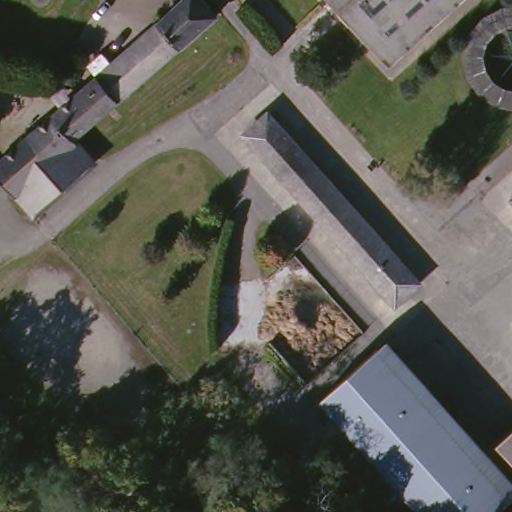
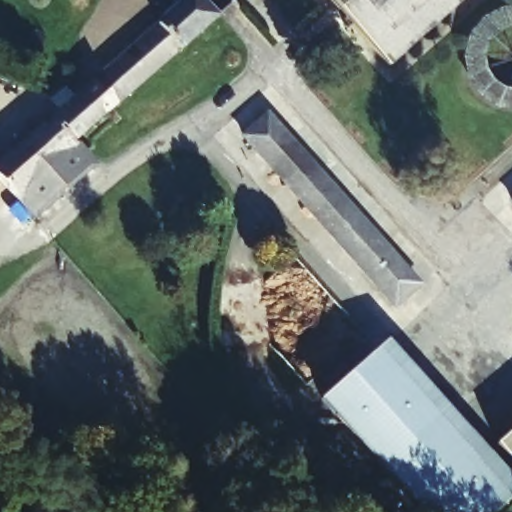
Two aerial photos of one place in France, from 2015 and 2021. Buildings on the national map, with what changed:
unchanged [(131,40),(173,0),(183,0),(203,19),(171,49),(150,69),(121,96),(72,141),(72,142),(76,146),(17,201),(0,183),(0,167),(1,166),(131,40)]
unchanged [(376,50),(328,0),(461,0),(390,65),(376,50)]
unchanged [(392,302),(361,267),(246,132),(269,110),(335,187),(417,279),(392,302)]
unchanged [(76,146),(92,160),(34,217),(17,201),(76,146)]
unchanged [(353,430),(321,391),(358,361),(380,343),(426,396),(440,414),(511,499),(506,503),(495,512),(422,512),(404,491),(353,430)]
unchanged [(512,468),(492,446),(512,428),(512,468)]

